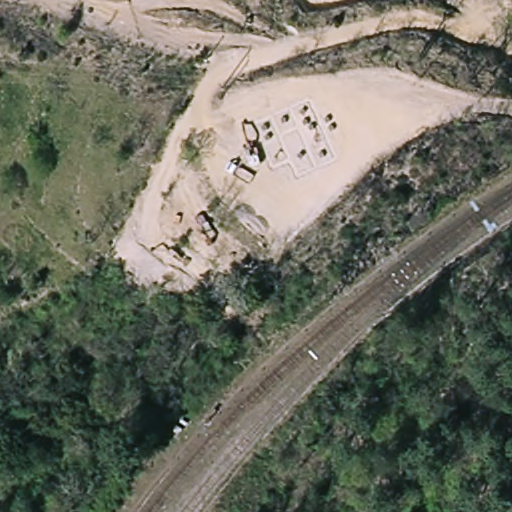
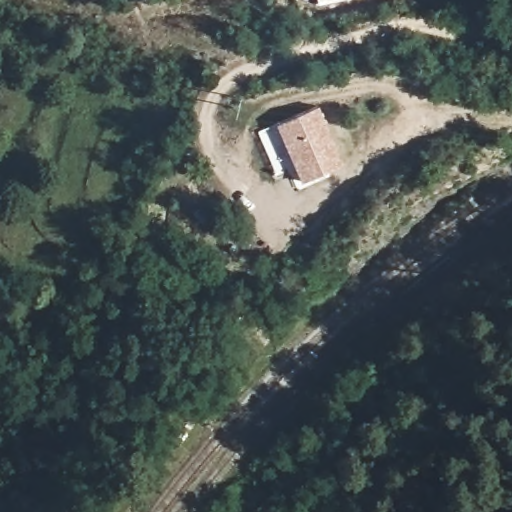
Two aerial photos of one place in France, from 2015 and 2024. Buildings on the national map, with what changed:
new [(303,182),(276,123),(318,106),(343,165),(303,182)]

